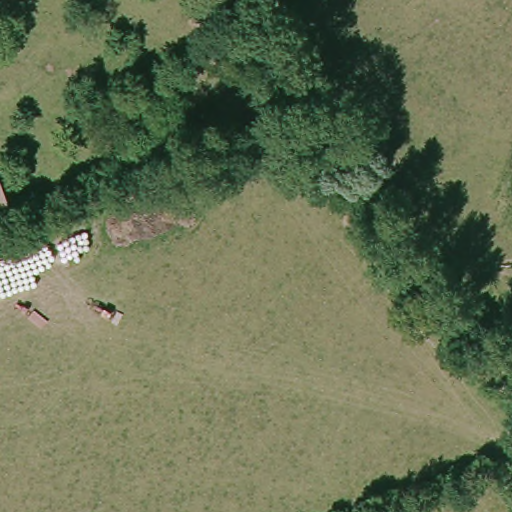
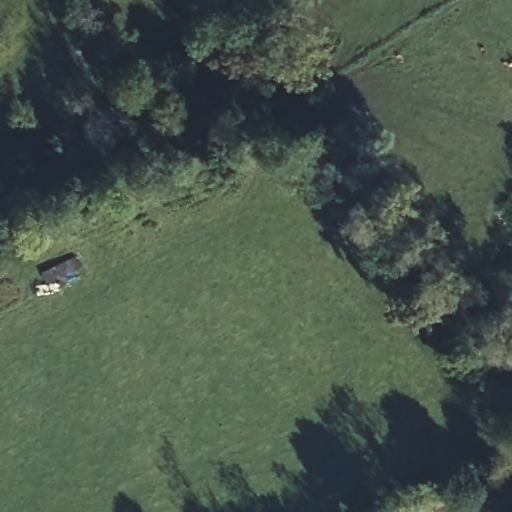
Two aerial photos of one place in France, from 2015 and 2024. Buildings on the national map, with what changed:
unchanged [(13,216),(0,221),(0,180),(13,216)]

